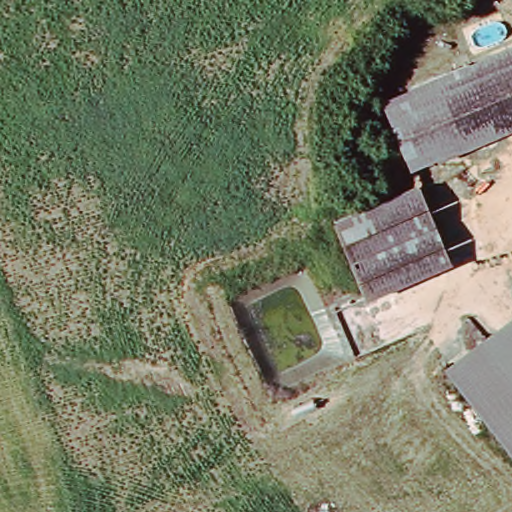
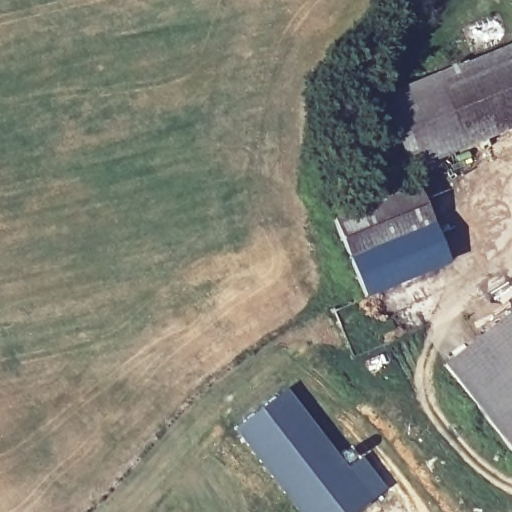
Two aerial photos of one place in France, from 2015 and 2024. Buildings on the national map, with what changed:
unchanged [(402,166),(377,101),(512,49),(512,123),(402,166)]
unchanged [(420,188),(450,265),(365,300),(335,221),(420,188)]
unchanged [(443,366),(512,312),(512,455),(443,366)]
new [(348,465),(363,454),(390,487),(359,512),(300,512),(235,427),(288,386),(348,465)]

